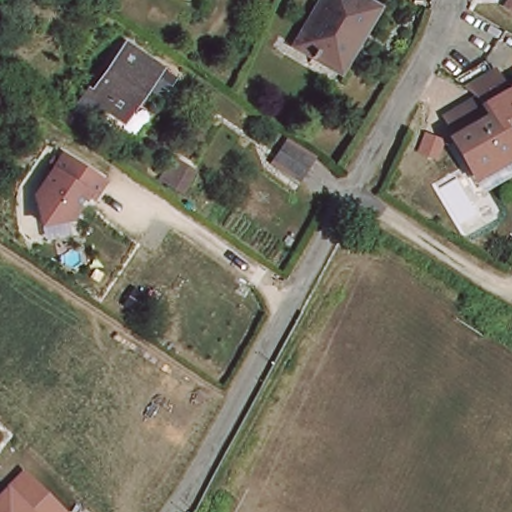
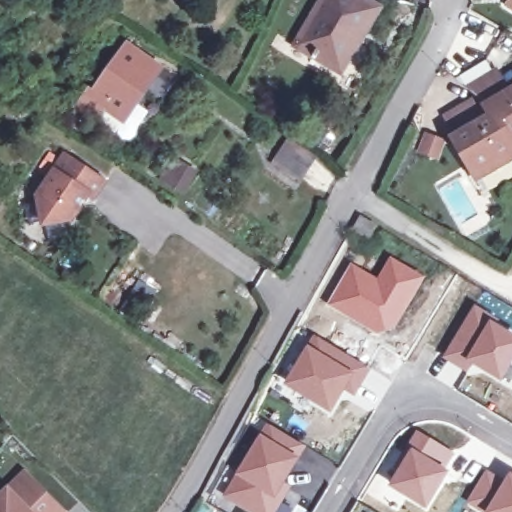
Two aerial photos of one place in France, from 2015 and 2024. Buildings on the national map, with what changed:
unchanged [(354,0),(368,7),(338,71),(295,51),(319,0),(354,0)]
unchanged [(508,0),(512,0),(512,22),(498,14),(508,0)]
unchanged [(90,85),(95,89),(125,41),(155,60),(126,108),(110,99),(100,113),(80,102),(90,85)]
unchanged [(486,110),(475,103),(463,94),(494,77),(507,100),(512,97),(512,154),(510,154),(492,120),(486,110)]
unchanged [(512,171),(475,189),(451,141),(452,140),(442,120),(475,103),(486,110),(492,120),(510,154),(512,157),(512,171)]
unchanged [(297,182),(274,166),(290,140),(314,156),(297,182)]
unchanged [(105,176),(93,197),(83,192),(79,201),(82,203),(73,218),(38,223),(30,189),(63,148),(105,176)]
new [(172,159),(195,173),(183,191),(161,178),(172,159)]
unchanged [(367,232),(360,247),(345,239),(353,224),(367,232)]
new [(350,262),(377,276),(390,255),(427,277),(400,321),(386,335),(384,338),(325,304),(350,262)]
new [(512,332),(512,380),(507,377),(503,382),(472,365),(467,373),(440,357),(473,304),(512,332)]
new [(313,333),(370,368),(354,397),(344,391),(331,414),(283,383),(313,333)]
new [(265,422),(307,446),(285,482),(292,487),(277,512),(249,512),(222,496),(265,422)]
new [(427,509),(387,485),(410,445),(407,443),(417,429),(455,453),(445,468),(450,470),(427,509)]
new [(512,512),(480,512),(465,502),(487,468),(504,479),(508,471),(512,474),(512,512)]
unchanged [(23,470),(65,512),(0,512),(0,494),(23,470)]

